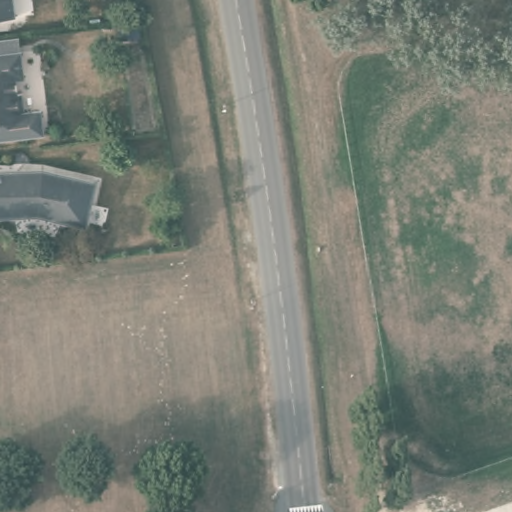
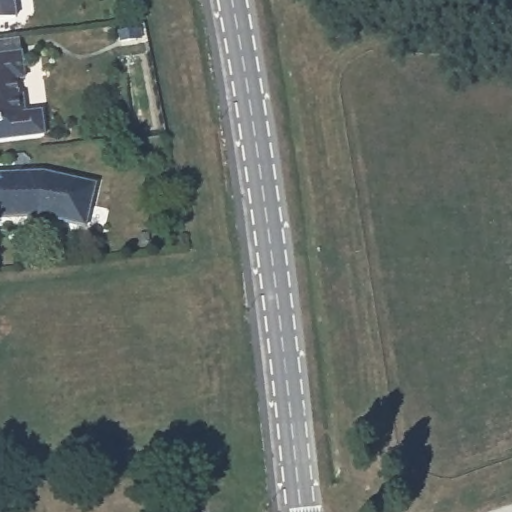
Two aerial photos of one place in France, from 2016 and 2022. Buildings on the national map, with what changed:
unchanged [(0,20),(0,0),(14,0),(16,18),(0,20)]
unchanged [(21,52),(24,77),(16,79),(17,91),(24,91),(26,113),(42,111),(45,134),(0,139),(0,38),(17,36),(21,52)]
unchanged [(42,215),(0,217),(0,171),(2,171),(2,175),(18,174),(17,171),(45,170),(97,182),(89,226),(42,215)]

